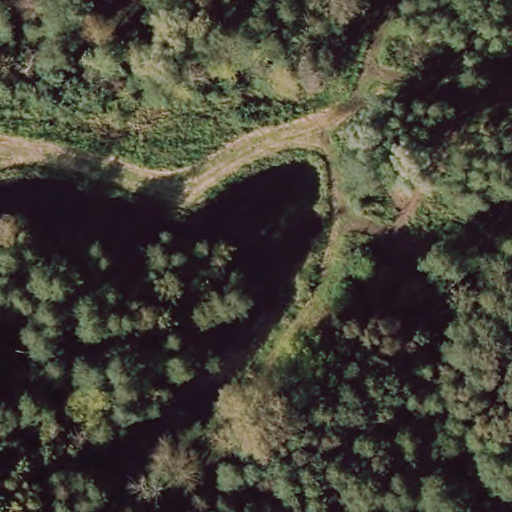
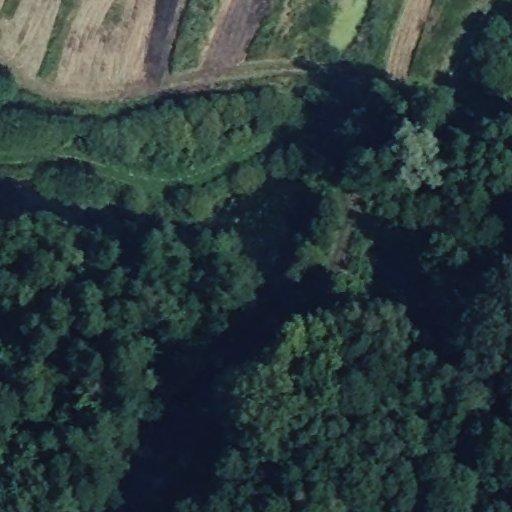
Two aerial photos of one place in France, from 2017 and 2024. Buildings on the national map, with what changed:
[]

